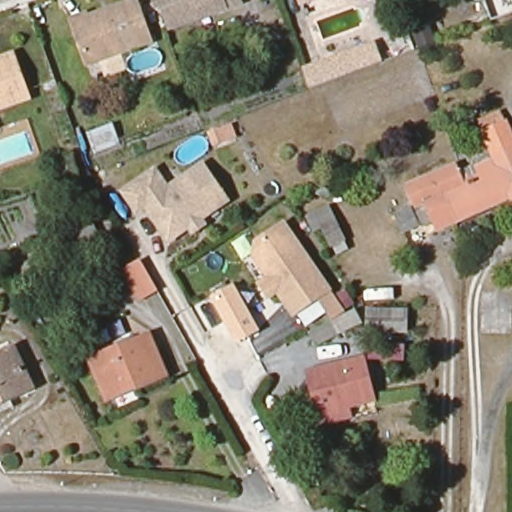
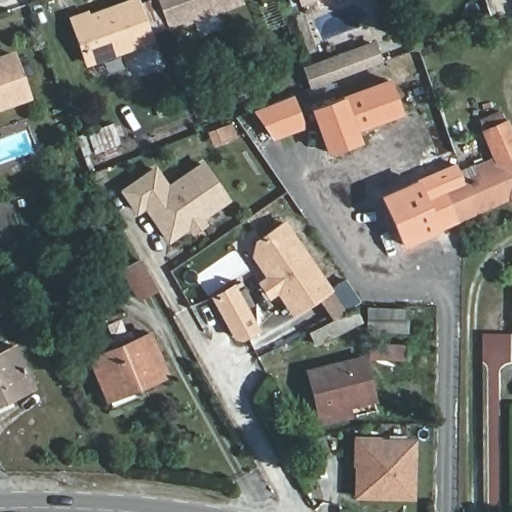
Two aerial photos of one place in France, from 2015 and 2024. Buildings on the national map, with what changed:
unchanged [(169,29),(165,18),(158,0),(240,0),(241,3),(169,29)]
unchanged [(300,0),(318,0),(302,6),(300,0)]
new [(481,0),(512,0),(512,9),(488,19),(481,0)]
unchanged [(150,39),(89,63),(74,20),(90,14),(92,19),(136,3),(150,39)]
unchanged [(425,9),(430,21),(421,24),(415,26),(410,15),(425,9)]
unchanged [(306,69),(373,44),(380,63),(310,89),(303,70),(306,69)]
unchanged [(30,98),(0,108),(0,60),(14,54),(30,98)]
new [(310,109),(391,78),(405,114),(355,133),(360,143),(326,151),(310,109)]
new [(292,94),(304,129),(272,139),(250,110),(292,94)]
unchanged [(405,183),(453,161),(456,169),(462,167),(475,162),(476,164),(493,158),(482,129),(505,120),(512,137),(512,197),(511,198),(509,193),(455,217),(435,225),(432,216),(422,221),(405,183)]
unchanged [(95,153),(89,134),(114,126),(120,144),(95,153)]
unchanged [(159,169),(170,188),(205,164),(228,198),(173,235),(150,202),(141,208),(129,189),(159,169)]
unchanged [(415,220),(402,226),(394,209),(406,203),(415,220)]
unchanged [(328,204),(347,242),(331,250),(320,230),(313,234),(305,215),(328,204)]
unchanged [(94,219),(104,237),(74,253),(66,234),(94,219)]
unchanged [(331,290),(291,319),(275,295),(268,303),(255,284),(263,279),(251,260),(254,240),(284,220),(331,290)]
unchanged [(155,289),(135,299),(120,272),(139,261),(155,289)]
unchanged [(232,287),(257,332),(234,344),(211,298),(232,287)]
unchanged [(413,310),(411,337),(367,335),(367,308),(413,310)]
unchanged [(164,378),(106,401),(90,361),(149,338),(164,378)]
unchanged [(29,388),(0,400),(0,357),(12,352),(29,388)]
unchanged [(371,401),(350,406),(352,416),(319,424),(307,373),(363,360),(371,401)]
new [(352,499),(354,438),(415,439),(413,501),(352,499)]

